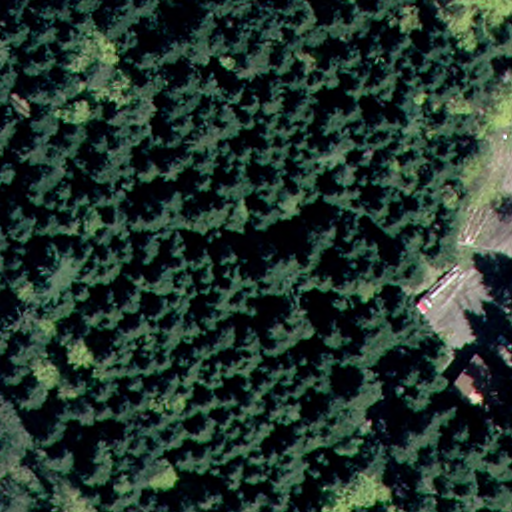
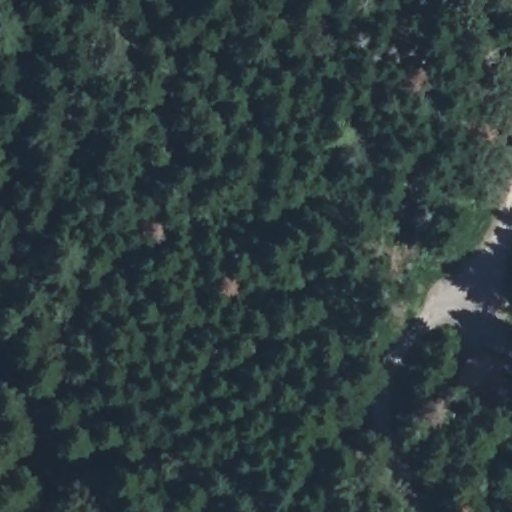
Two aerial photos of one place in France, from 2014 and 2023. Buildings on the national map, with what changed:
unchanged [(509,369),(484,408),(449,388),(477,347),(509,369)]

